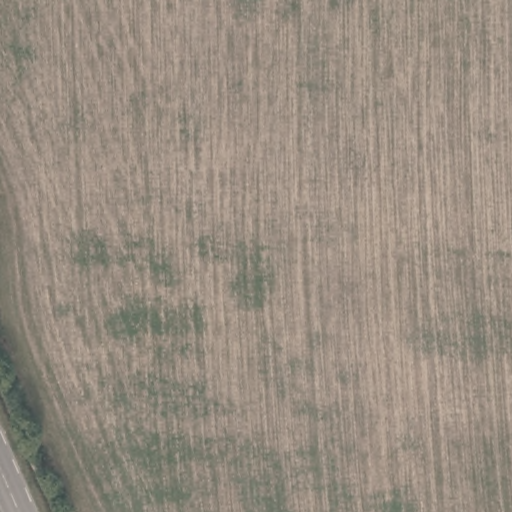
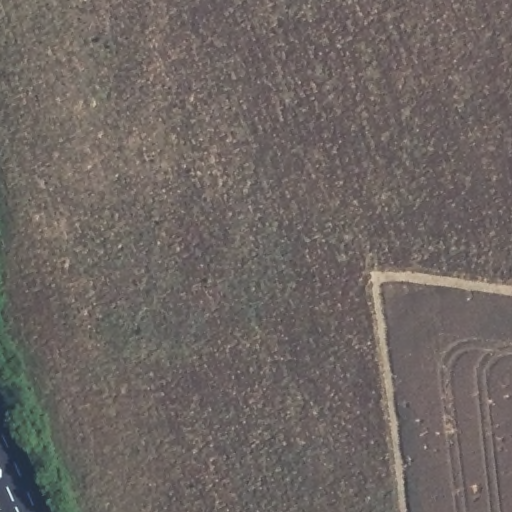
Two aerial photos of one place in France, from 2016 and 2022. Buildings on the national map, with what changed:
[]

